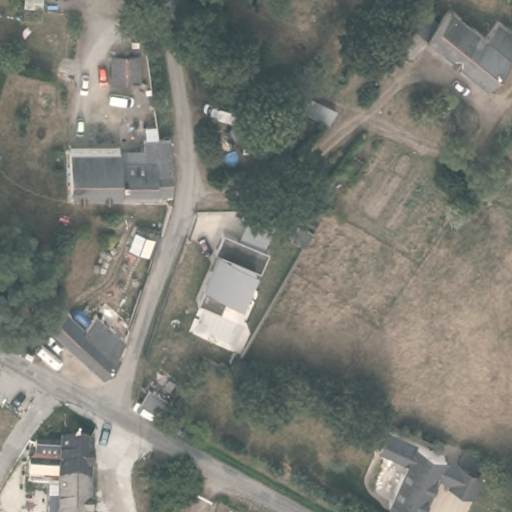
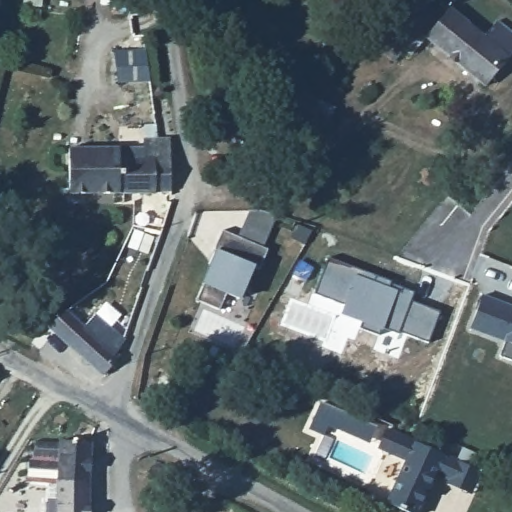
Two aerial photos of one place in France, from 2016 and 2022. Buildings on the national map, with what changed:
unchanged [(402,45),(397,42),(421,10),(442,26),(454,14),(490,42),(504,29),(512,36),(512,63),(490,89),(433,44),(420,59),(402,45)]
unchanged [(154,56),(155,85),(109,84),(108,57),(154,56)]
unchanged [(325,127),(282,106),(295,75),(316,81),(309,96),(337,110),(325,127)]
unchanged [(139,166),(140,146),(166,146),(166,148),(166,150),(166,199),(150,199),(150,200),(115,199),(116,167),(116,165),(139,166)]
unchanged [(115,199),(65,199),(66,154),(116,154),(116,165),(116,167),(115,199)]
unchanged [(250,210),(274,215),(263,246),(269,249),(261,269),(254,267),(240,299),(228,294),(221,311),(198,302),(218,252),(214,251),(223,230),(239,237),(250,210)]
new [(390,288),(401,292),(403,288),(415,292),(412,301),(441,312),(429,343),(400,332),(399,335),(382,328),(379,336),(360,328),(363,321),(344,313),(347,306),(315,295),(329,258),(392,282),(392,284),(390,288)]
new [(483,296),(512,307),(512,361),(500,357),(506,342),(471,328),(483,296)]
unchanged [(44,325),(63,310),(80,325),(93,312),(121,337),(123,338),(113,352),(116,355),(99,373),(44,325)]
unchanged [(141,393),(156,377),(170,389),(156,403),(141,393)]
unchanged [(89,512),(58,512),(58,486),(28,486),(29,462),(34,458),(34,442),(60,443),(62,425),(92,427),(89,454),(89,512)]
unchanged [(446,483),(448,478),(435,472),(415,512),(406,512),(386,502),(407,459),(378,446),(387,427),(443,454),(480,471),(469,493),(446,483)]

